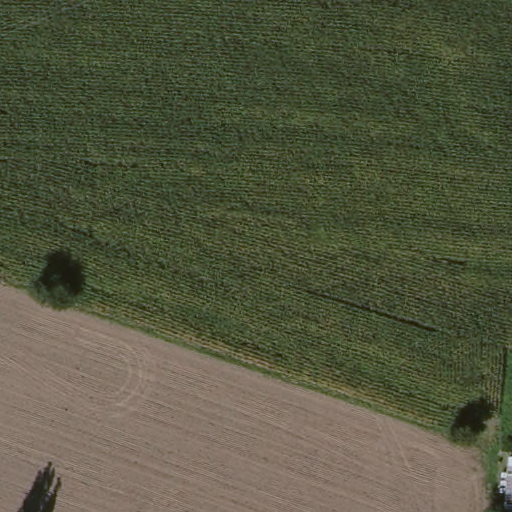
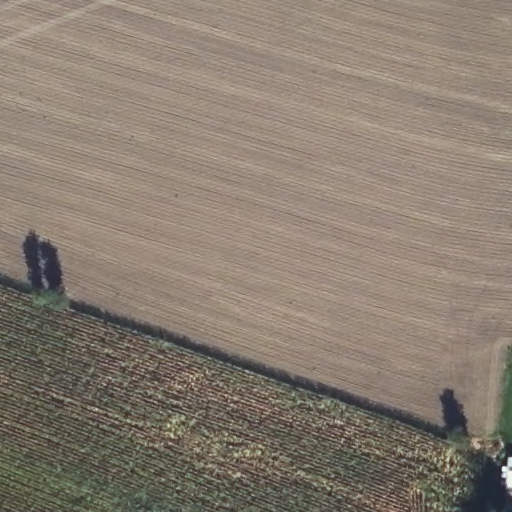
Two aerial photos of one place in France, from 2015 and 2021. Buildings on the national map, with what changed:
unchanged [(511,512),(512,500),(512,512),(511,512)]

